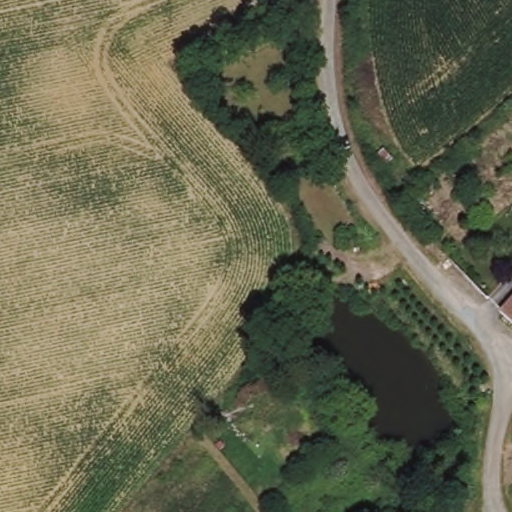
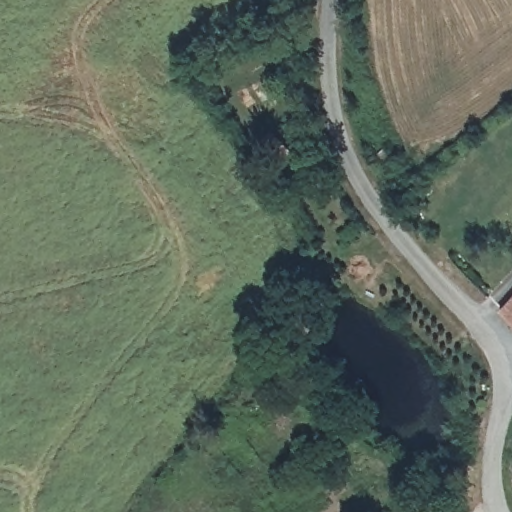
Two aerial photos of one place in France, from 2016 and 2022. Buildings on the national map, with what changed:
unchanged [(426,190),(429,193),(424,197),(428,202),(419,207),(413,200),(426,190)]
unchanged [(512,306),(512,318),(506,313),(512,306)]

